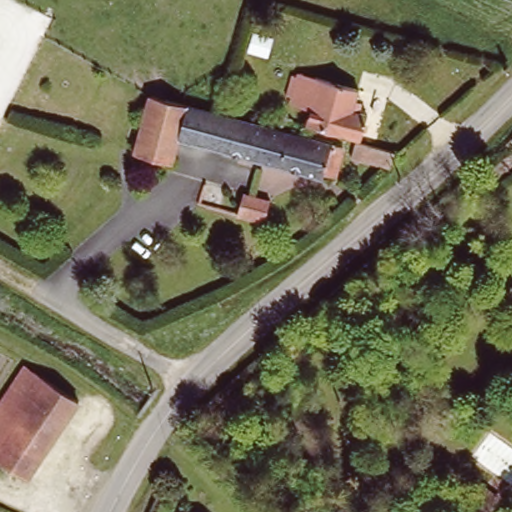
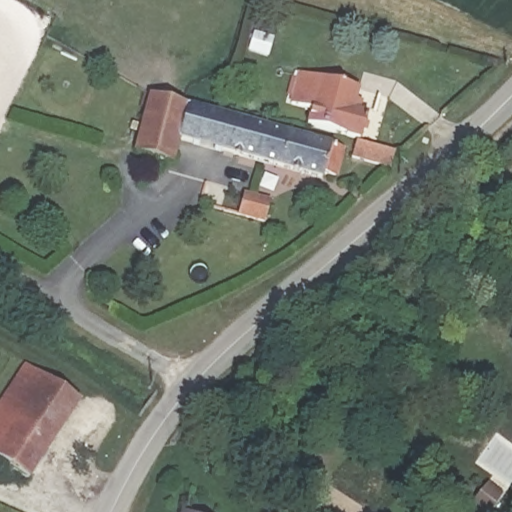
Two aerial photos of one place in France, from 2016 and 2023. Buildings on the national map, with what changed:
unchanged [(310,110),(290,104),(298,74),(357,90),(352,110),(364,113),(357,141),(305,126),(310,110)]
unchanged [(133,152),(140,130),(149,98),(341,153),(334,179),(322,175),(320,181),(179,141),(172,164),(133,152)]
unchanged [(387,170),(351,160),(355,145),(402,158),(387,170)]
unchanged [(237,212),(242,189),(272,195),(267,219),(237,212)]
unchanged [(0,434),(0,409),(28,366),(81,402),(41,462),(0,434)]
unchanged [(41,462),(28,482),(0,463),(0,434),(41,462)]
unchanged [(471,500),(488,510),(487,512),(469,512),(465,510),(471,500)]
unchanged [(182,512),(178,512),(179,510),(182,512)]

